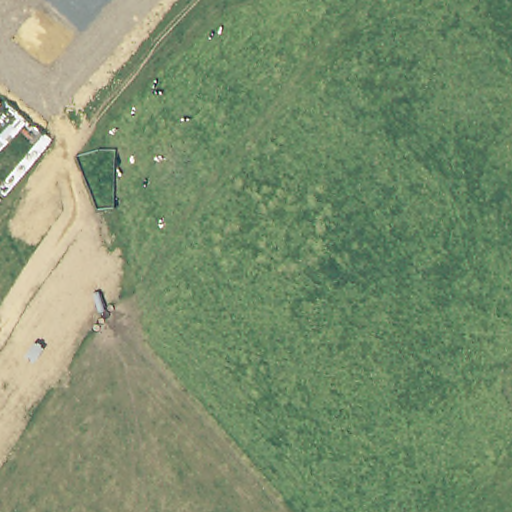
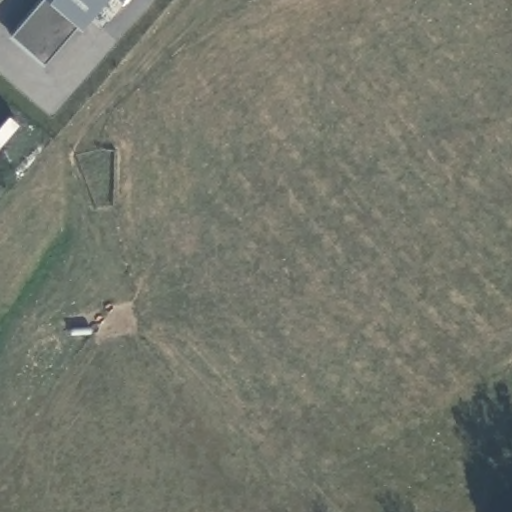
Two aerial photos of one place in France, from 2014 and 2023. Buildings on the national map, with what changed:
new [(82,31),(76,28),(45,64),(12,35),(43,0),(109,0),(82,31)]

